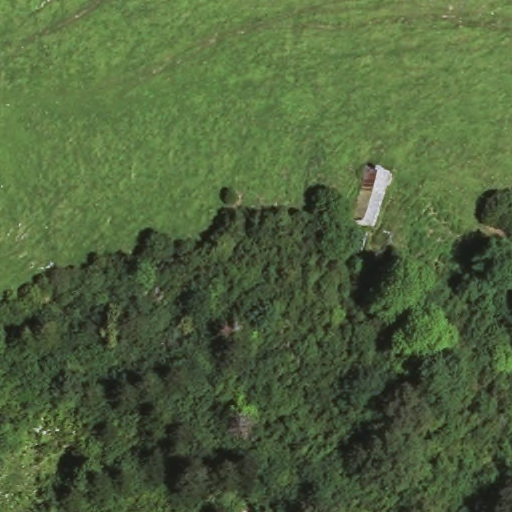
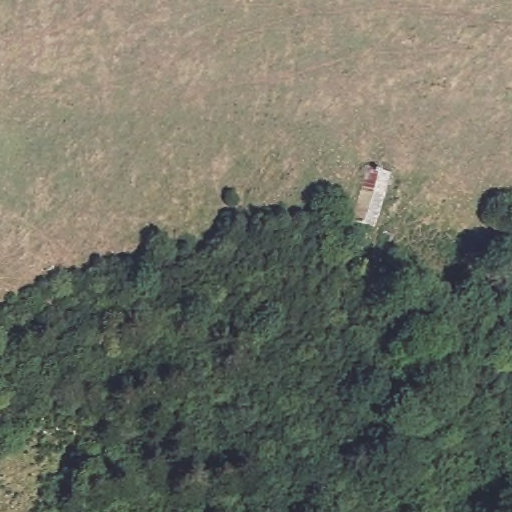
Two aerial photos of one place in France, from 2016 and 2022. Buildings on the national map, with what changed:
unchanged [(381,205),(370,234),(346,225),(368,166),(392,175),(381,205)]

